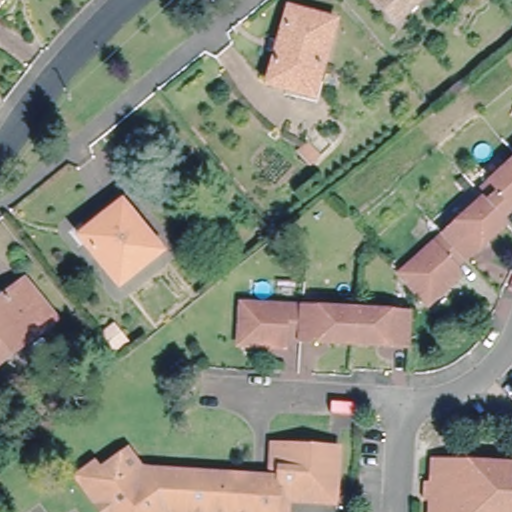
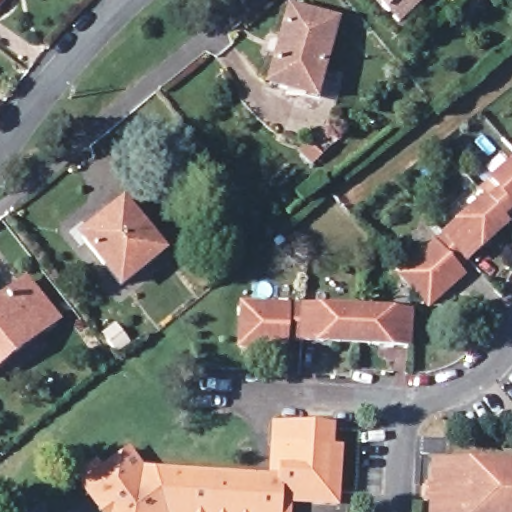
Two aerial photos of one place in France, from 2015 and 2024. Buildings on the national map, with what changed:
unchanged [(396,27),(370,0),(425,0),(396,27)]
unchanged [(328,25),(308,98),(265,86),(286,13),(328,25)]
unchanged [(481,189),(512,162),(512,213),(507,217),(511,221),(472,258),(470,256),(460,266),(465,271),(433,301),(404,270),(448,231),(487,195),(481,189)]
unchanged [(162,253),(121,288),(81,240),(122,205),(162,253)]
unchanged [(0,358),(0,296),(21,279),(51,318),(0,358)]
unchanged [(336,342),(298,340),(298,339),(283,338),(282,346),(238,344),(240,304),(299,307),(405,311),(403,345),(365,343),(350,343),(336,342)]
unchanged [(115,329),(127,344),(116,353),(104,338),(115,329)]
unchanged [(279,490),(278,512),(209,512),(164,509),(160,512),(113,512),(87,478),(98,469),(124,448),(149,479),(166,477),(166,470),(278,477),(279,460),(270,460),(271,444),(328,448),(326,493),(279,490)]
unchanged [(335,504),(289,502),(289,512),(278,512),(279,490),(326,493),(328,448),(338,449),(335,504)]
unchanged [(509,463),(508,472),(512,473),(512,512),(423,512),(424,498),(415,497),(416,479),(425,480),(427,457),(509,463)]
unchanged [(92,461),(98,469),(87,478),(113,512),(101,512),(73,475),(92,461)]
unchanged [(209,512),(160,512),(164,509),(209,512)]

